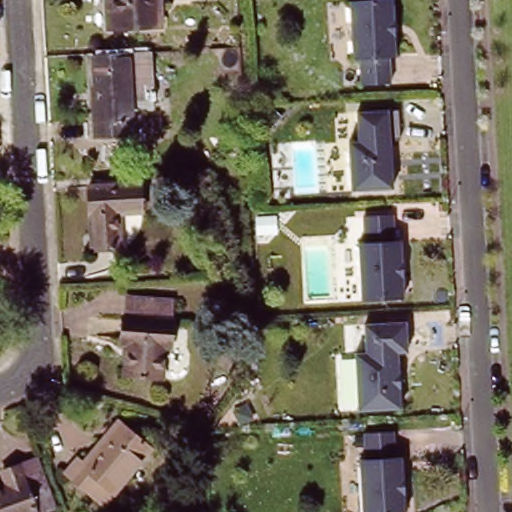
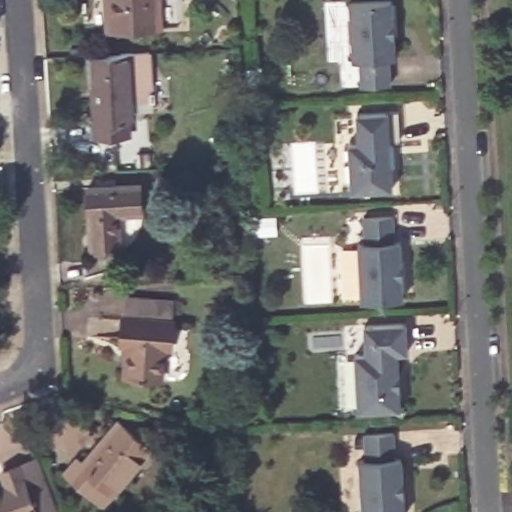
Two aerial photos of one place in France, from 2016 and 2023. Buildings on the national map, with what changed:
unchanged [(160,0),(162,28),(110,30),(108,0),(160,0)]
unchanged [(388,0),(391,58),(385,58),(387,84),(357,86),(355,60),(349,60),(345,3),(375,0),(388,0)]
unchanged [(132,111),(132,121),(130,121),(130,136),(95,138),(94,123),(97,123),(93,56),(152,54),(153,96),(154,110),(132,111)]
unchanged [(392,109),(395,139),(385,139),(387,187),(346,190),(343,141),(352,141),(351,111),(392,109)]
unchanged [(84,188),(135,185),(137,213),(112,214),(115,249),(87,250),(84,188)]
unchanged [(387,219),(388,242),(395,241),(399,299),(357,302),(352,247),(358,246),(357,221),(387,219)]
unchanged [(124,293),(174,297),(172,317),(123,313),(124,293)]
unchanged [(125,371),(127,340),(121,339),(123,313),(172,317),(170,344),(163,343),(160,374),(125,371)]
unchanged [(400,323),(402,353),(392,354),(396,402),(355,405),(351,357),(361,356),(359,326),(400,323)]
unchanged [(80,466),(92,451),(98,454),(133,414),(165,440),(117,496),(80,466)]
unchanged [(388,433),(390,459),(396,458),(399,512),(357,512),(353,461),(360,461),(358,435),(388,433)]
unchanged [(41,464),(58,512),(33,512),(19,473),(41,464)]
unchanged [(7,492),(2,479),(19,473),(33,512),(0,512),(0,494),(7,492)]

